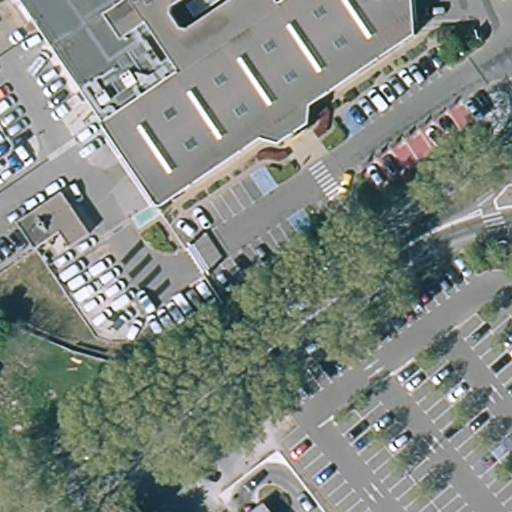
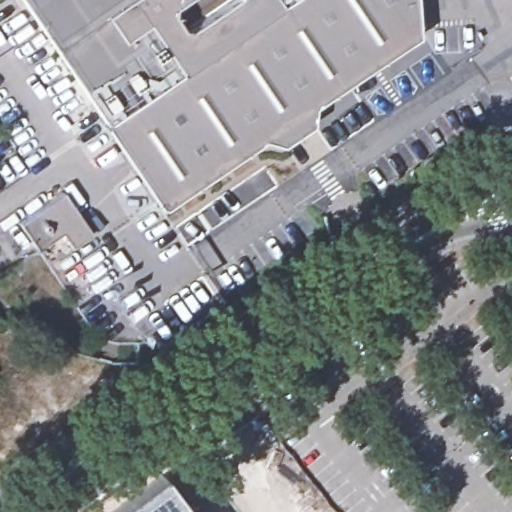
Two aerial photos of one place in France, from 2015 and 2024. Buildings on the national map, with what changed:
unchanged [(417,27),(313,100),(313,122),(283,143),(262,136),(163,205),(158,204),(101,123),(104,121),(19,0),(413,0),(417,27)]
unchanged [(73,249),(63,234),(38,251),(20,225),(64,193),(93,235),(73,249)]
new [(190,512),(103,512),(159,470),(190,512)]
unchanged [(267,512),(256,512),(263,507),(267,512)]

